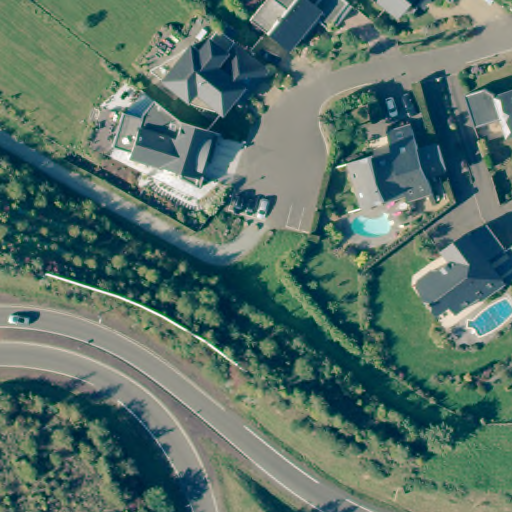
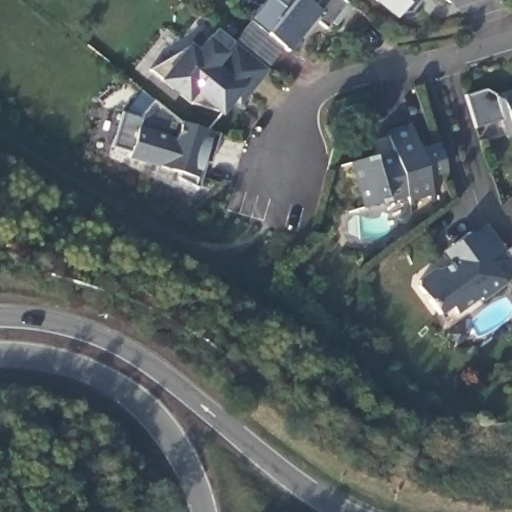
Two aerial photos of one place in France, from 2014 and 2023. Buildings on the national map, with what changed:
unchanged [(343,0),(342,1),(346,5),(331,23),(326,20),(321,27),(309,17),(283,49),(244,17),(258,0),(343,0)]
unchanged [(388,13),(373,0),(416,0),(407,11),(388,13)]
unchanged [(443,0),(445,0),(444,1),(443,0)]
unchanged [(249,55),(265,68),(246,92),(240,86),(231,96),(220,110),(190,101),(179,91),(149,66),(188,42),(197,50),(215,26),(249,55)]
unchanged [(175,177),(177,173),(126,157),(127,150),(112,146),(121,112),(139,92),(178,123),(217,134),(209,164),(203,162),(195,188),(175,177)]
unchanged [(491,101),(512,94),(512,139),(505,142),(491,101)]
unchanged [(419,175),(424,189),(401,197),(399,191),(355,205),(340,161),(366,152),(368,157),(384,152),(378,134),(402,125),(410,147),(429,141),(438,169),(419,175)]
unchanged [(467,231),(483,217),(499,239),(503,245),(512,238),(512,265),(501,273),(467,231)]
unchanged [(477,292),(474,288),(453,306),(446,298),(435,307),(411,277),(429,262),(432,266),(456,247),(449,237),(463,226),(467,231),(501,273),(477,292)]

